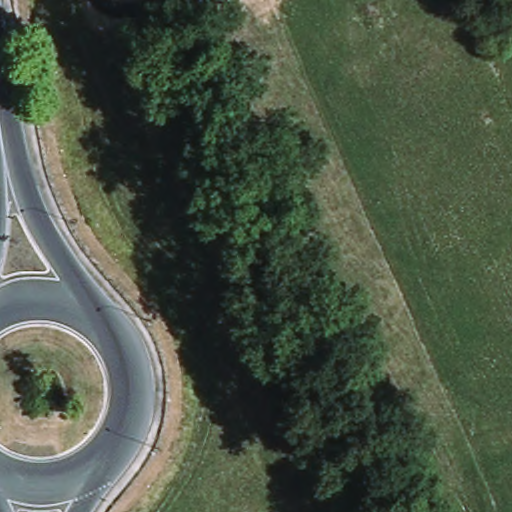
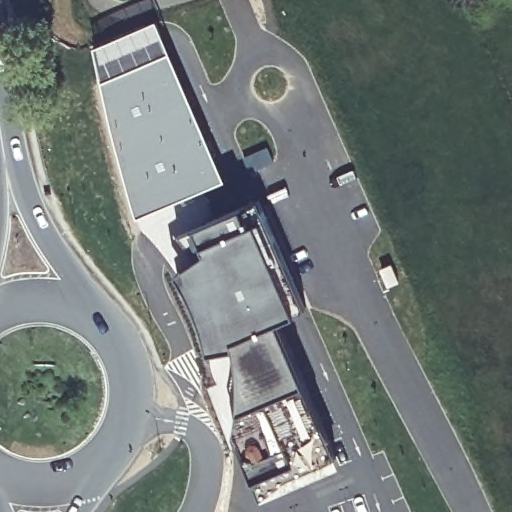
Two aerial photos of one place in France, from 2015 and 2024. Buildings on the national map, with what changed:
new [(138,216),(95,46),(157,19),(170,51),(225,179),(138,216)]
new [(255,478),(237,432),(240,410),(240,368),(235,344),(210,350),(199,308),(179,270),(201,255),(183,233),(258,199),(307,307),(297,312),(278,320),(305,381),(342,465),(263,496),(255,478)]

